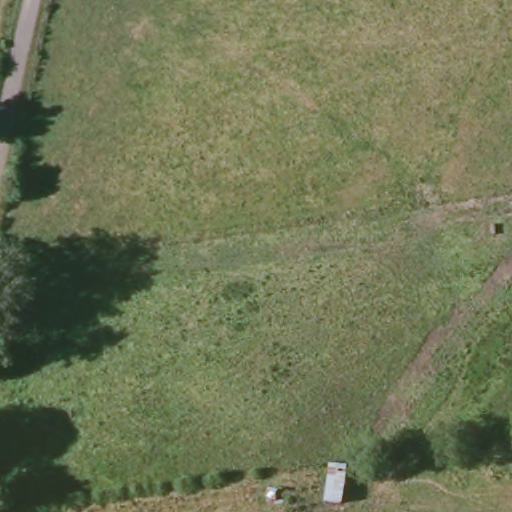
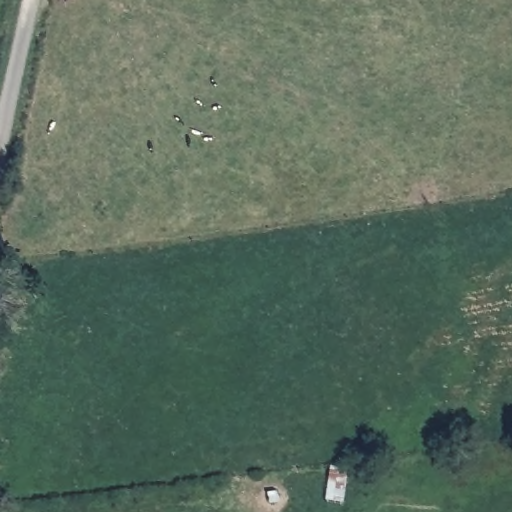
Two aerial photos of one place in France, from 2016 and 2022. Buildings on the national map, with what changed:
unchanged [(344,467),(340,503),(321,502),(326,466),(344,467)]

